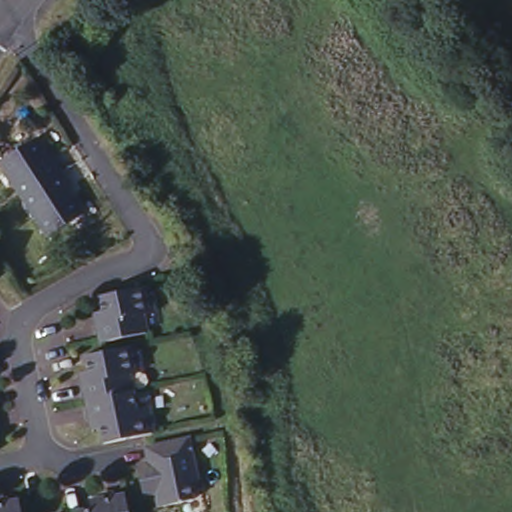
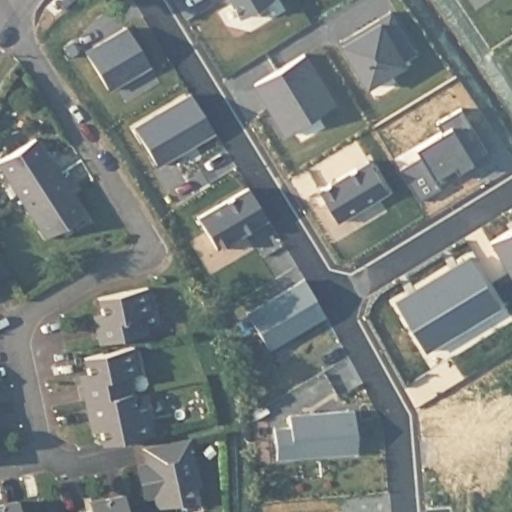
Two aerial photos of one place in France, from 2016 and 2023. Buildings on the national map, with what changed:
new [(238,17),(228,0),(265,0),(238,17)]
new [(412,51),(400,59),(402,63),(365,86),(340,45),(338,42),(352,35),(389,12),(412,51)]
new [(85,50),(124,27),(147,65),(108,89),(85,50)]
new [(301,53),(332,103),(282,133),(252,83),(301,53)]
new [(512,65),(510,63),(512,61),(512,65)]
new [(188,94),(211,131),(156,166),(133,127),(188,94)]
new [(435,182),(413,145),(441,130),(435,120),(458,107),(485,151),(470,161),(456,170),(435,182)]
unchanged [(22,200),(0,166),(0,163),(35,140),(49,162),(53,159),(62,172),(22,200)]
new [(366,159),(385,190),(335,220),(316,189),(366,159)]
unchanged [(71,186),(67,188),(84,213),(49,237),(22,200),(62,172),(71,186)]
new [(246,188),(265,219),(215,250),(196,219),(246,188)]
new [(512,225),(512,281),(487,241),(512,225)]
new [(448,268),(451,272),(457,268),(455,264),(467,256),(497,304),(460,327),(430,279),(448,268)]
new [(407,294),(408,298),(415,294),(412,290),(430,279),(460,327),(423,350),(393,301),(407,294)]
new [(265,347),(245,312),(302,280),(322,315),(265,347)]
unchanged [(149,287),(155,313),(144,316),(148,334),(102,345),(98,325),(105,324),(99,299),(149,287)]
unchanged [(134,347),(140,373),(129,376),(134,394),(89,405),(84,385),(91,384),(85,359),(134,347)]
unchanged [(134,394),(137,410),(149,408),(155,434),(107,446),(100,421),(92,423),(89,405),(134,394)]
new [(351,409),(355,452),(275,459),(272,428),(288,427),(287,415),(351,409)]
unchanged [(150,469),(146,454),(189,442),(197,479),(189,481),(195,503),(161,512),(157,499),(152,500),(147,501),(140,472),(145,470),(150,469)]
unchanged [(0,512),(0,502),(0,495),(20,490),(25,512),(0,512)]
unchanged [(88,512),(87,511),(110,506),(108,500),(131,494),(135,512),(88,512)]
unchanged [(84,512),(87,511),(88,512),(84,512)]

